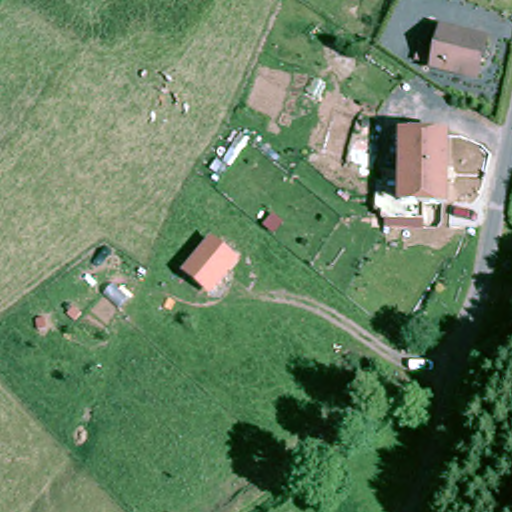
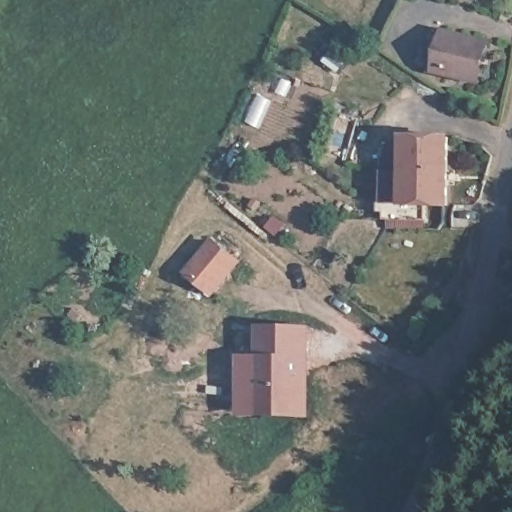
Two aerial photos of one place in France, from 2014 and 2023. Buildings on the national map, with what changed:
unchanged [(481,81),(446,72),(436,69),(444,35),(454,38),(488,47),(481,81)]
unchanged [(454,136),(451,209),(400,207),(401,134),(454,136)]
unchanged [(243,261),(212,298),(182,274),(212,236),(243,261)]
new [(255,354),(258,323),(311,325),(310,416),(237,415),(238,353),(255,354)]

